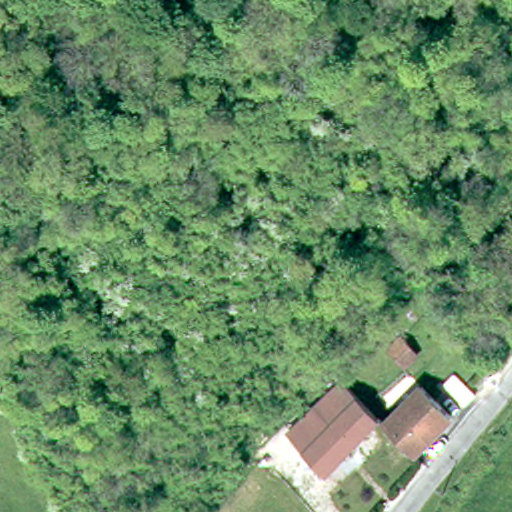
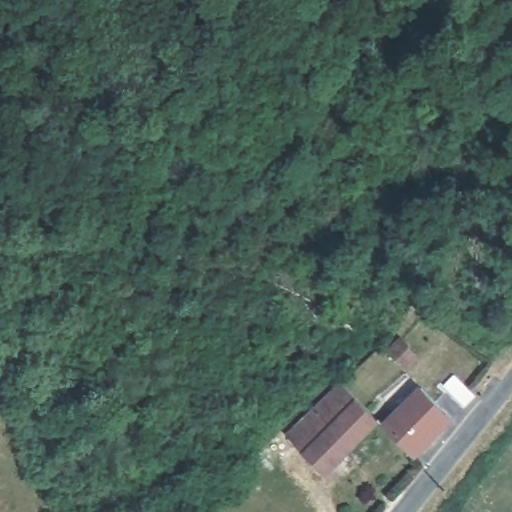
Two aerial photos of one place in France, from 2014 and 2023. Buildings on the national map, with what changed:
unchanged [(404,369),(392,356),(403,345),(416,359),(404,369)]
unchanged [(453,379),(473,399),(464,411),(442,389),(453,379)]
unchanged [(378,418),(325,470),(290,434),(342,382),(378,418)]
unchanged [(448,415),(414,454),(384,424),(421,388),(448,415)]

